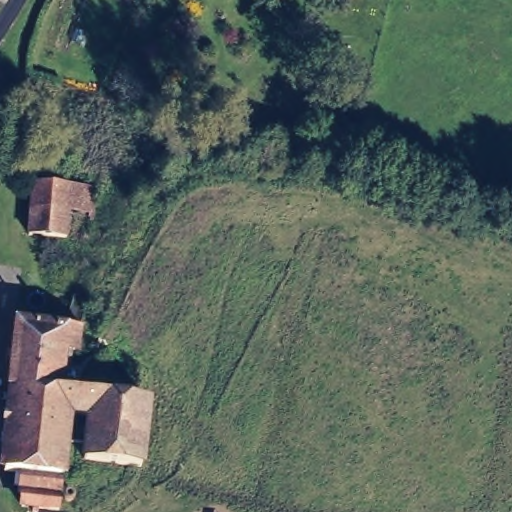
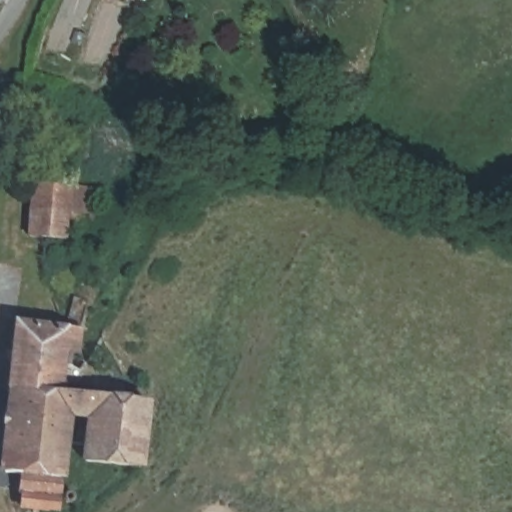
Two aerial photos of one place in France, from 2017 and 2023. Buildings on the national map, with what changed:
unchanged [(65,234),(27,232),(32,180),(68,182),(65,234)]
unchanged [(92,184),(90,236),(65,234),(68,182),(92,184)]
unchanged [(88,322),(85,349),(75,347),(68,387),(142,398),(152,400),(143,465),(86,457),(92,413),(70,410),(66,447),(75,448),(75,461),(63,460),(58,505),(37,502),(37,506),(30,505),(30,500),(22,499),(23,483),(17,482),(20,463),(6,462),(17,381),(12,380),(21,312),(88,322)]

